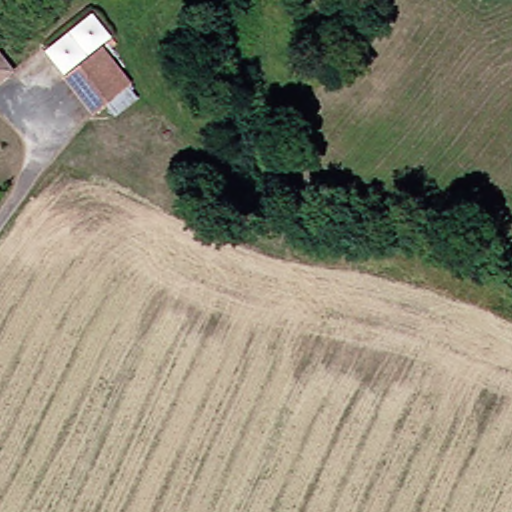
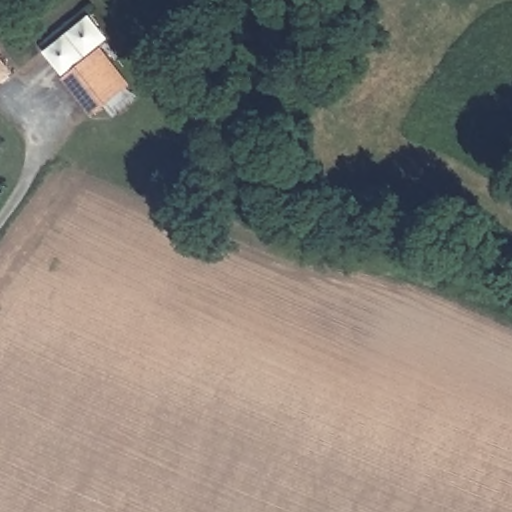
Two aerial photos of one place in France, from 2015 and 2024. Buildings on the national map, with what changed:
unchanged [(73,77),(104,53),(131,87),(99,111),(73,77)]
unchanged [(0,82),(0,54),(13,72),(0,82)]

